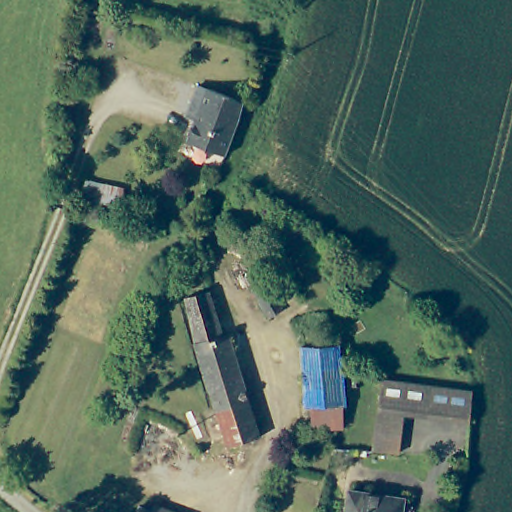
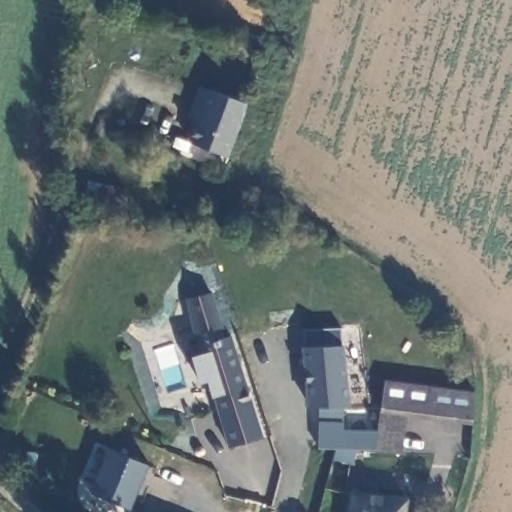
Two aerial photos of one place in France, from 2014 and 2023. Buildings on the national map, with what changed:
unchanged [(241,112),(228,146),(189,132),(203,97),(241,112)]
unchanged [(128,191),(121,216),(73,206),(79,181),(128,191)]
unchanged [(207,410),(219,407),(214,385),(212,385),(200,348),(197,339),(188,293),(210,288),(221,333),(227,332),(262,432),(229,442),(227,433),(214,437),(207,410)]
unchanged [(314,428),(314,407),(308,408),(304,347),(342,345),(349,407),(346,407),(344,427),(314,428)]
unchanged [(474,392),(473,420),(407,411),(401,454),(375,451),(381,407),(384,380),(474,392)]
new [(132,507),(90,492),(109,446),(149,462),(132,507)]
unchanged [(357,450),(354,463),(332,458),(335,448),(357,450)]
unchanged [(405,512),(349,512),(353,491),(407,498),(405,512)]
unchanged [(144,512),(146,507),(157,512),(144,512)]

